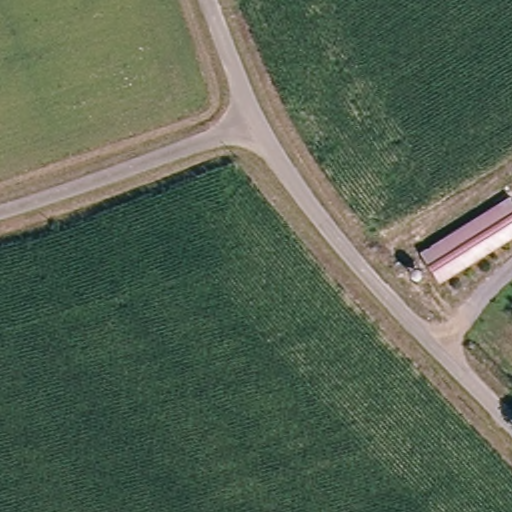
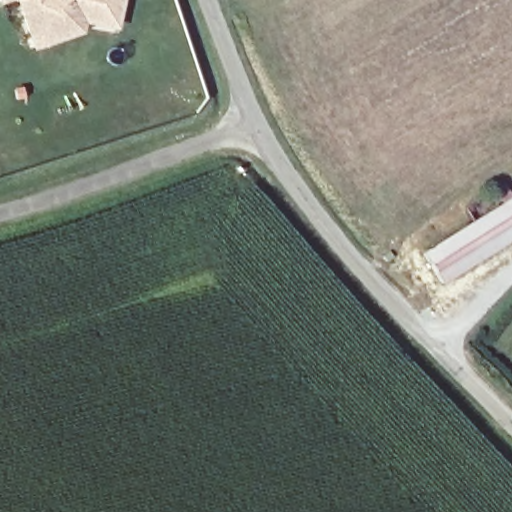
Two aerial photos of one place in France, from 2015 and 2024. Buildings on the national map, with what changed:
new [(117,32),(84,25),(81,35),(32,52),(14,1),(0,5),(0,0),(123,0),(117,32)]
unchanged [(433,270),(417,242),(504,190),(512,204),(512,224),(433,270)]
unchanged [(512,224),(512,249),(445,289),(433,270),(512,224)]

